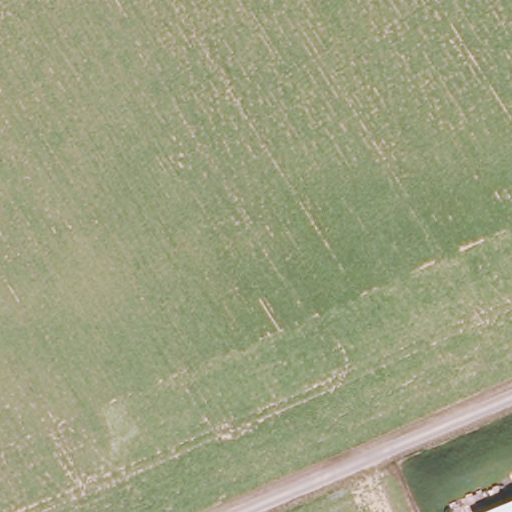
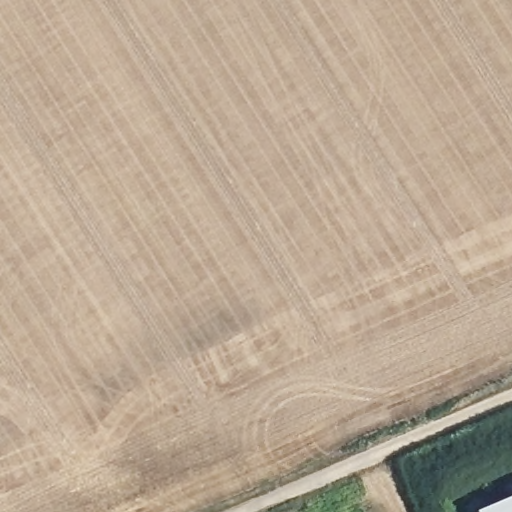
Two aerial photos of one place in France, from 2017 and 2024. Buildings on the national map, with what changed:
unchanged [(512,512),(477,512),(512,497),(512,512)]

